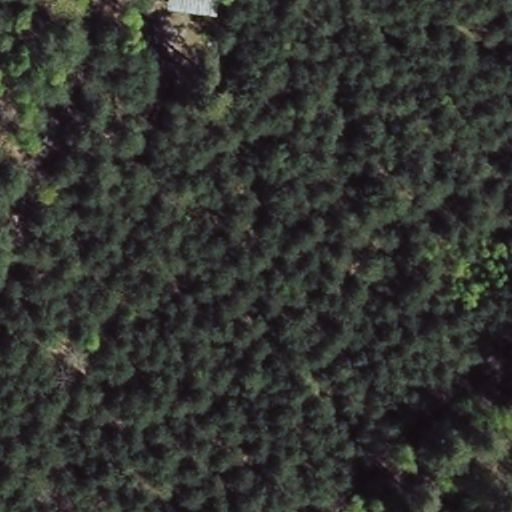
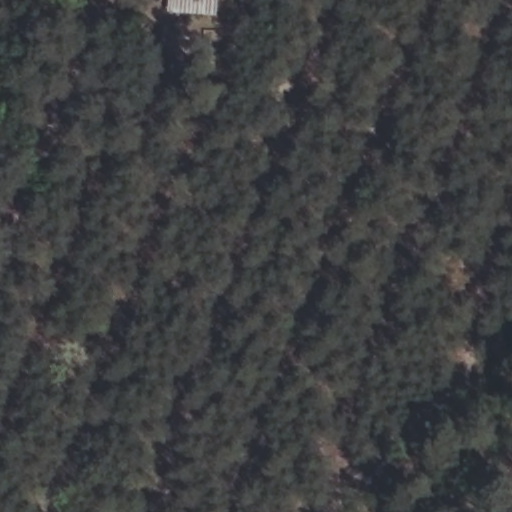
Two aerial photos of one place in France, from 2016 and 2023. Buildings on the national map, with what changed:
unchanged [(160,5),(162,0),(218,0),(214,17),(160,5)]

